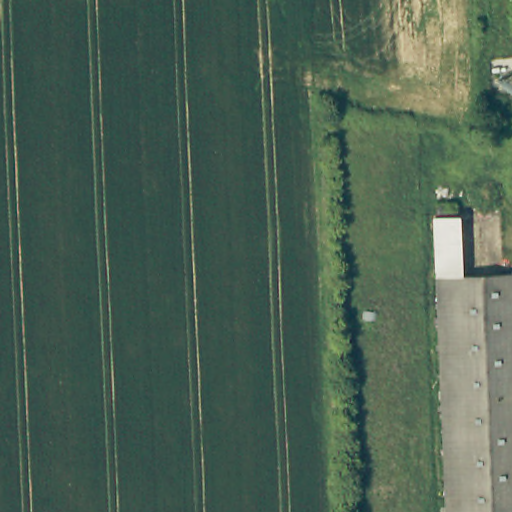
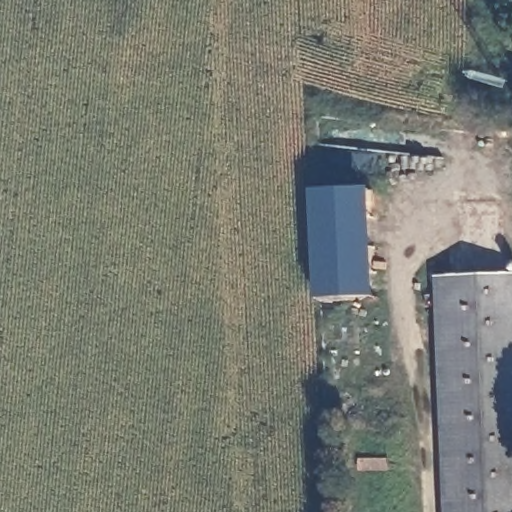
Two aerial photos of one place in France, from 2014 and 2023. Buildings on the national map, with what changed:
new [(320,298),(313,190),(373,186),(380,297),(320,298)]
unchanged [(445,512),(435,275),(458,275),(512,273),(512,512),(445,512)]

